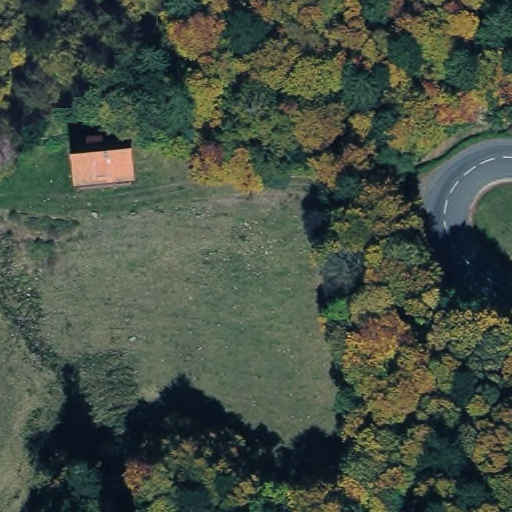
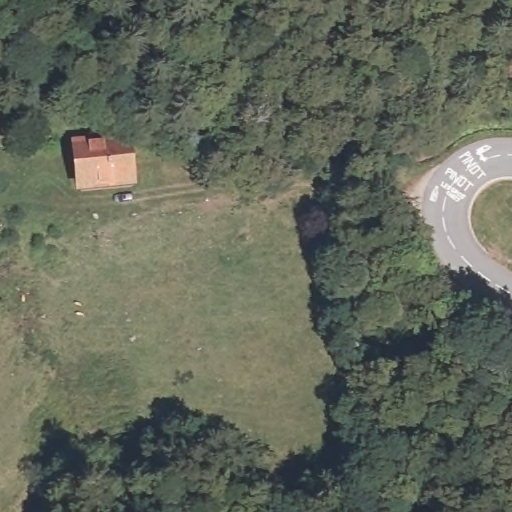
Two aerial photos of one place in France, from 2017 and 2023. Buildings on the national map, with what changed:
unchanged [(127,155),(125,199),(73,197),(75,154),(127,155)]

